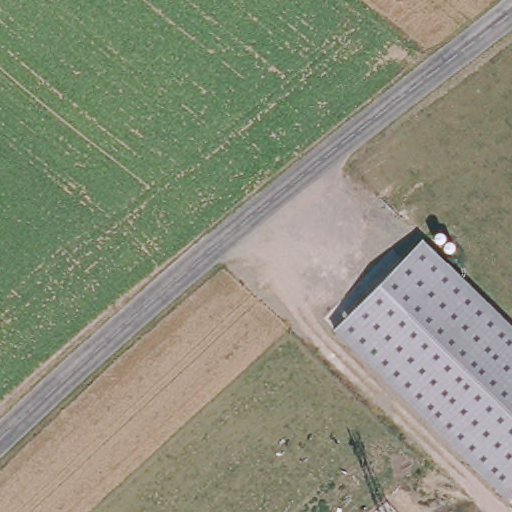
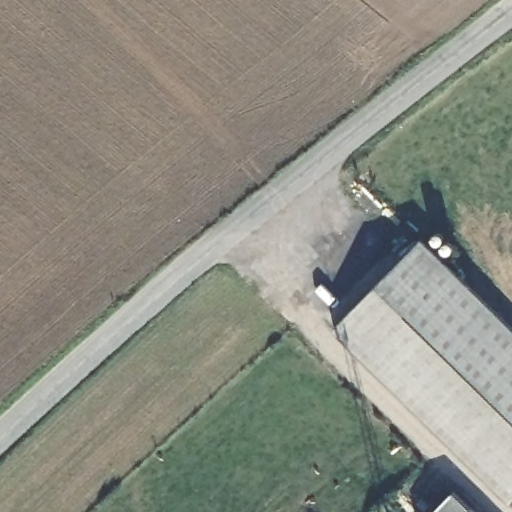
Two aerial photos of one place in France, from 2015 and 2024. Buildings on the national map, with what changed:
unchanged [(512,327),(512,500),(332,332),(424,241),(512,327)]
new [(434,512),(454,492),(475,512),(434,512)]

